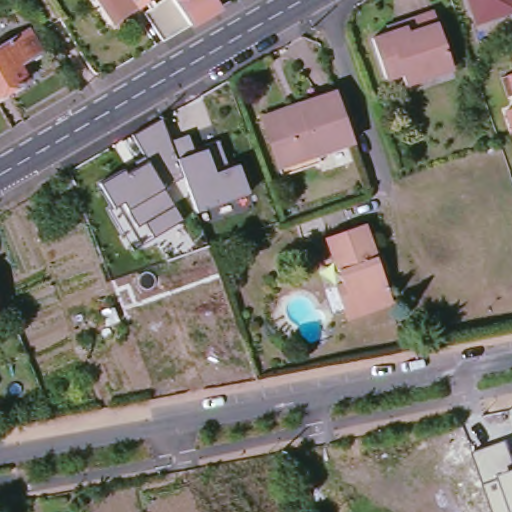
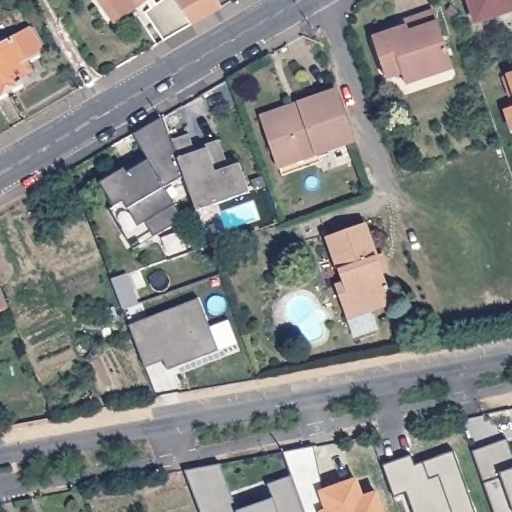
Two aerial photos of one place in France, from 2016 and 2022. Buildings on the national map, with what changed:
unchanged [(116,0),(153,0),(145,6),(127,17),(116,0)]
unchanged [(168,42),(150,13),(169,0),(179,0),(197,26),(168,42)]
unchanged [(225,9),(197,26),(179,0),(220,0),(225,9)]
unchanged [(477,23),(469,0),(512,0),(512,11),(477,23)]
unchanged [(453,69),(405,85),(402,74),(386,79),(372,39),(387,34),(385,28),(403,22),(433,12),(453,69)]
unchanged [(42,52),(19,65),(27,80),(0,95),(0,47),(30,31),(42,52)]
unchanged [(507,76),(512,74),(512,88),(507,76)]
unchanged [(265,126),(262,118),(300,105),(337,92),(354,141),(279,167),(265,126)]
unchanged [(506,112),(512,109),(512,129),(506,112)]
new [(145,223),(137,227),(128,210),(124,203),(115,206),(103,183),(125,171),(128,177),(148,163),(135,136),(163,118),(173,144),(178,159),(185,175),(163,188),(176,205),(175,206),(184,222),(155,237),(145,223)]
unchanged [(200,213),(178,159),(173,144),(190,138),(196,155),(208,150),(207,146),(220,142),(228,171),(240,167),(250,194),(200,213)]
unchanged [(352,318),(347,319),(343,309),(336,287),(343,284),(327,237),(365,224),(377,257),(382,255),(388,270),(382,272),(392,298),(393,303),(352,318)]
unchanged [(0,311),(0,287),(8,307),(0,311)]
new [(167,367),(165,361),(147,368),(130,326),(200,299),(220,351),(178,367),(169,371),(167,367)]
unchanged [(494,512),(472,452),(505,442),(512,460),(512,512),(494,512)]
new [(414,512),(408,493),(395,497),(385,466),(412,457),(415,468),(453,452),(475,512),(414,512)]
new [(220,464),(232,498),(201,509),(186,471),(220,464)]
new [(237,512),(273,499),(268,485),(291,476),(304,512),(202,512),(201,509),(232,498),(237,512)]
new [(377,491),(385,512),(321,512),(325,509),(318,492),(357,479),(365,496),(377,491)]

